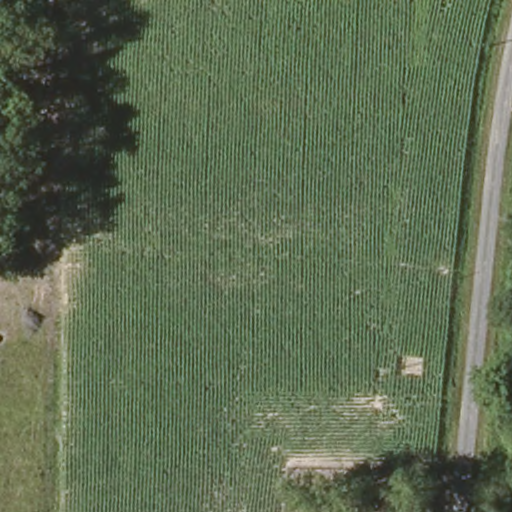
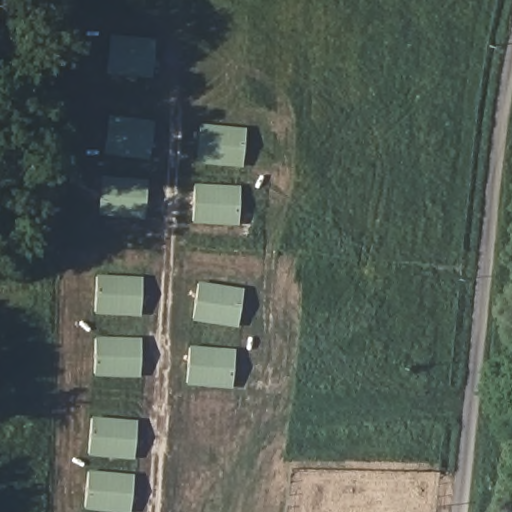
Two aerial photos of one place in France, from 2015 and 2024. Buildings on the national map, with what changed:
new [(108,71),(112,30),(157,34),(153,76),(108,71)]
new [(152,159),(105,156),(108,116),(154,119),(153,139),(152,159)]
new [(201,122),(247,127),(243,167),(197,163),(199,142),(201,122)]
new [(147,177),(143,217),(97,213),(101,172),(147,177)]
new [(195,224),(195,184),(239,186),(241,227),(195,224)]
new [(94,316),(98,275),(144,279),(140,320),(94,316)]
new [(240,330),(194,323),(200,283),(246,290),(243,310),(240,330)]
new [(94,333),(140,335),(139,376),(92,374),(93,353),(94,333)]
new [(235,351),(231,392),(185,387),(189,346),(235,351)]
new [(90,415),(136,419),(132,460),(86,455),(88,435),(90,415)]
new [(132,474),(132,512),(120,512),(87,509),(89,472),(132,474)]

